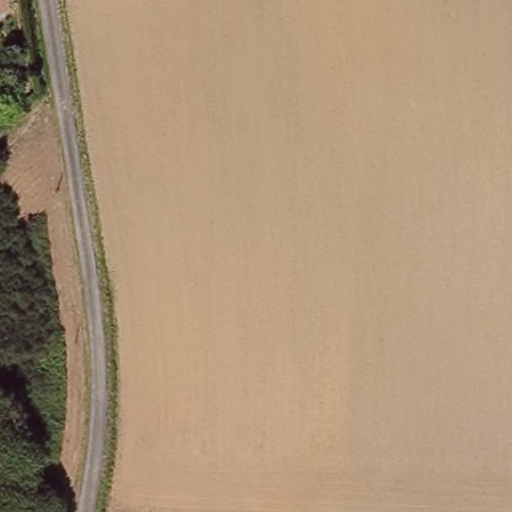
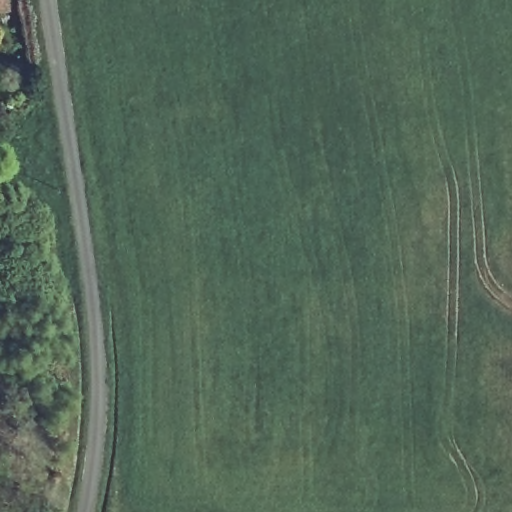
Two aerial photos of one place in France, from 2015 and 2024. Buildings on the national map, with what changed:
unchanged [(0,7),(0,0),(7,0),(8,7),(0,7)]

